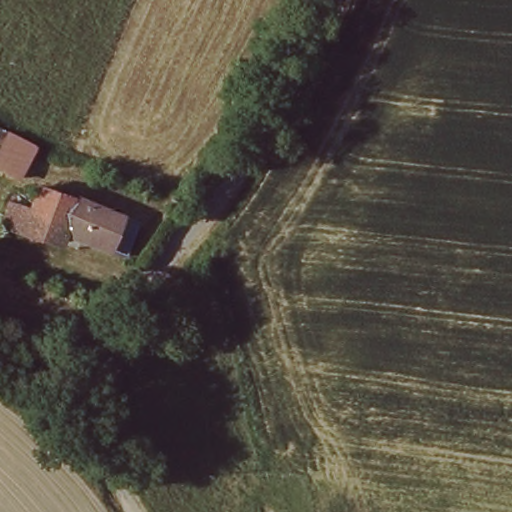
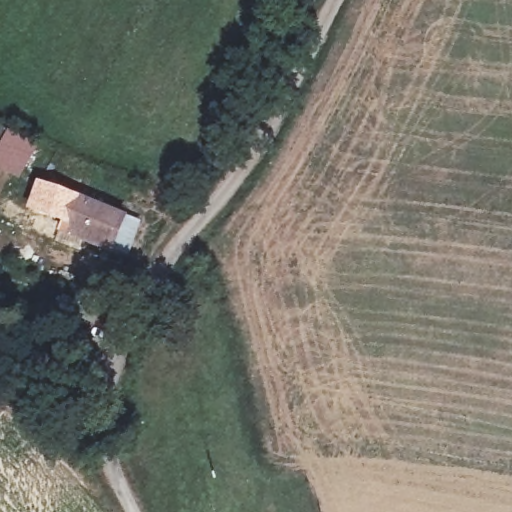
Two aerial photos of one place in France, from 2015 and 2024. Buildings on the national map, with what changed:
unchanged [(23,181),(0,168),(0,152),(4,142),(0,140),(0,126),(38,147),(23,181)]
unchanged [(30,200),(38,177),(127,210),(122,219),(134,223),(124,249),(85,235),(87,226),(68,219),(30,200)]
unchanged [(62,238),(40,230),(2,214),(11,193),(30,200),(68,219),(62,238)]

